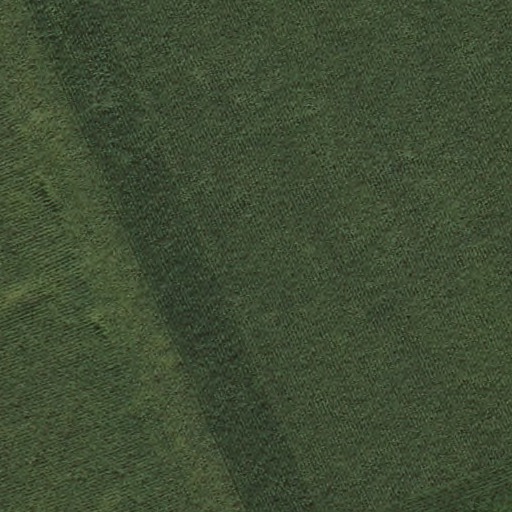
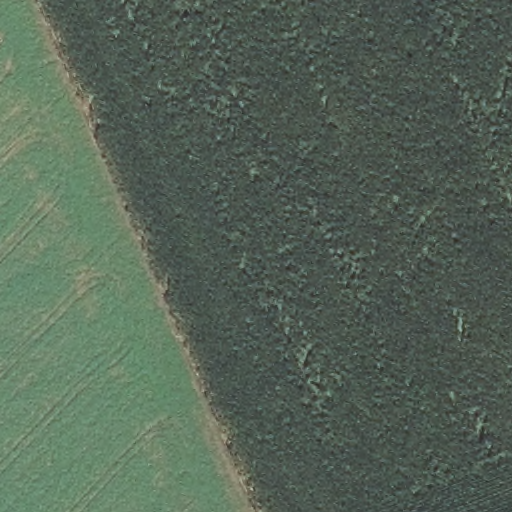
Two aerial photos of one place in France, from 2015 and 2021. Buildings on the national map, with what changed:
[]

